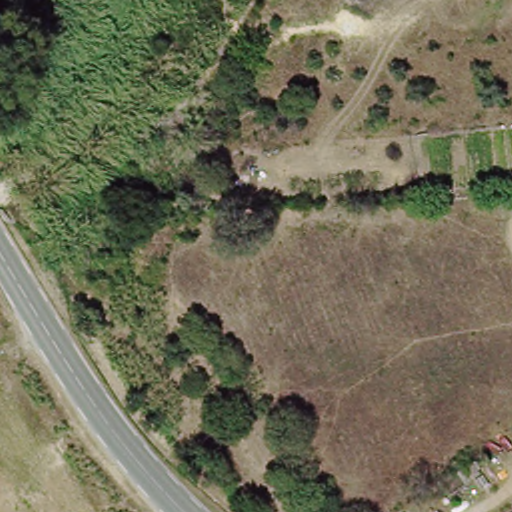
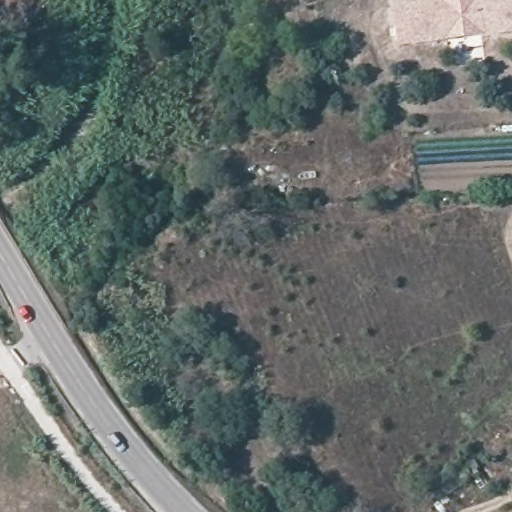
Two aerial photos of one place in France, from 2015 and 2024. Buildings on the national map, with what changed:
new [(394,5),(431,0),(512,0),(512,32),(400,47),(394,5)]
unchanged [(107,208),(116,207),(118,220),(106,222),(107,208)]

